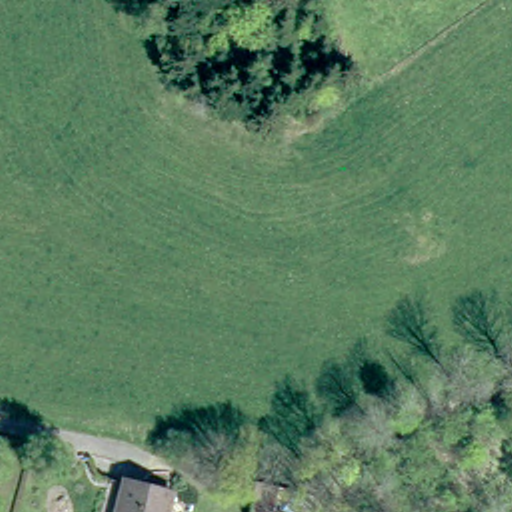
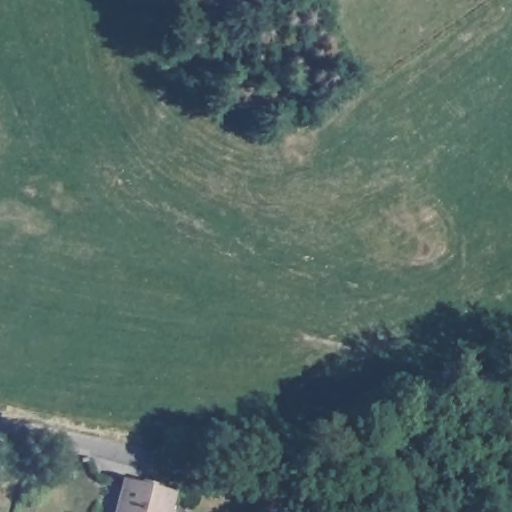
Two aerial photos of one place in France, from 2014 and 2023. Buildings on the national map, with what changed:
unchanged [(125,477),(185,493),(179,512),(116,512),(125,477)]

